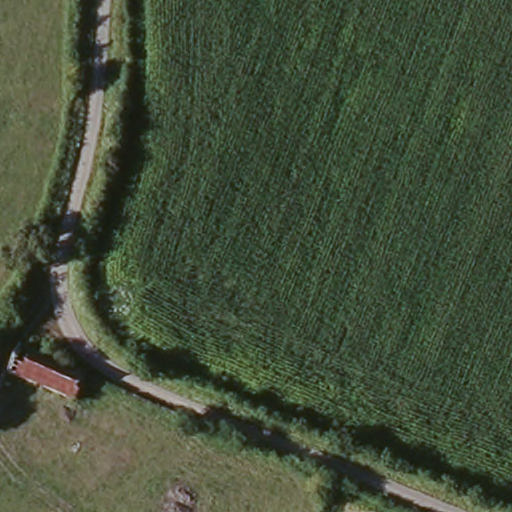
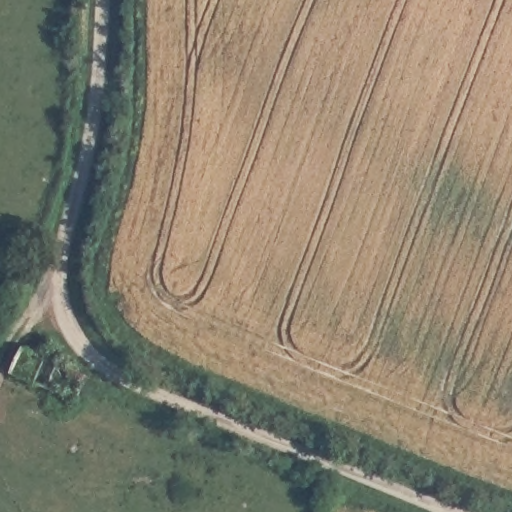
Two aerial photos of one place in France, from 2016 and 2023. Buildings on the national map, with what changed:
unchanged [(91,377),(76,406),(5,372),(19,344),(91,377)]

